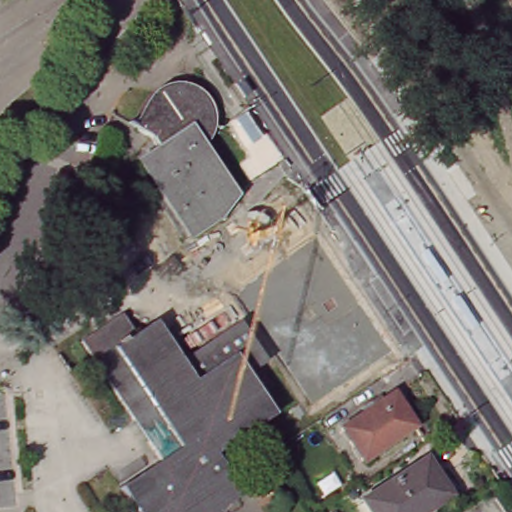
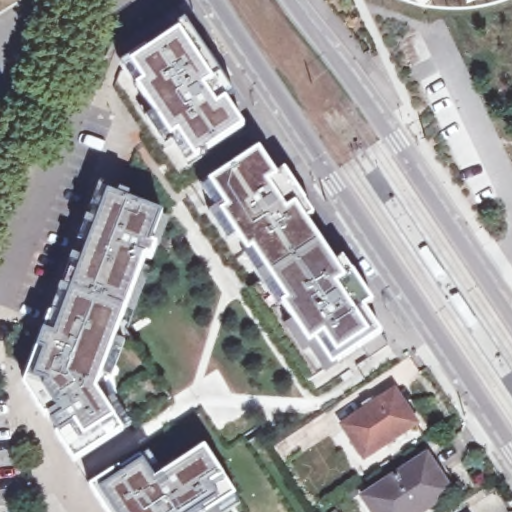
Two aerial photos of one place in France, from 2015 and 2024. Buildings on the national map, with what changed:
new [(422,6),(416,0),(430,0),(422,6)]
new [(169,139),(135,87),(120,65),(184,20),(234,96),(226,102),(242,126),(205,151),(205,156),(198,156),(194,160),(177,134),(169,139)]
demolished [(183,219),(177,222),(155,187),(160,184),(142,157),(159,146),(152,135),(137,127),(157,93),(160,90),(167,87),(173,85),(181,84),(190,85),(197,89),(203,94),(207,101),(210,107),(212,113),(212,123),(210,130),(206,136),(197,143),(232,194),(210,208),(217,219),(210,220),(192,232),(183,219)]
new [(285,302),(267,276),(251,252),(247,254),(219,213),(225,209),(208,183),(258,149),(275,175),(283,170),(312,216),(305,221),(333,262),(342,257),(372,302),(363,308),(380,333),(331,366),(315,341),(307,345),(280,305),(285,302)]
new [(57,436),(50,423),(22,385),(37,347),(42,332),(57,294),(60,286),(68,264),(71,255),(83,224),(85,218),(97,191),(107,194),(160,213),(149,243),(155,245),(150,258),(144,256),(124,309),(94,390),(113,419),(121,430),(72,462),(57,436)]
new [(285,302),(280,305),(307,345),(315,341),(331,366),(309,381),(247,288),(267,276),(285,302)]
new [(113,419),(94,390),(124,309),(130,313),(124,329),(170,398),(121,430),(113,419)]
demolished [(82,343),(119,319),(132,338),(157,322),(184,363),(243,323),(270,365),(252,377),(277,417),(217,456),(244,496),(221,512),(137,512),(123,489),(161,464),(82,343)]
unchanged [(342,425),(394,390),(415,423),(364,458),(342,425)]
new [(120,471),(137,458),(141,465),(151,480),(203,449),(222,479),(235,496),(210,512),(104,512),(89,488),(117,469),(120,471)]
unchanged [(427,454),(452,492),(422,512),(370,512),(362,498),(427,454)]

